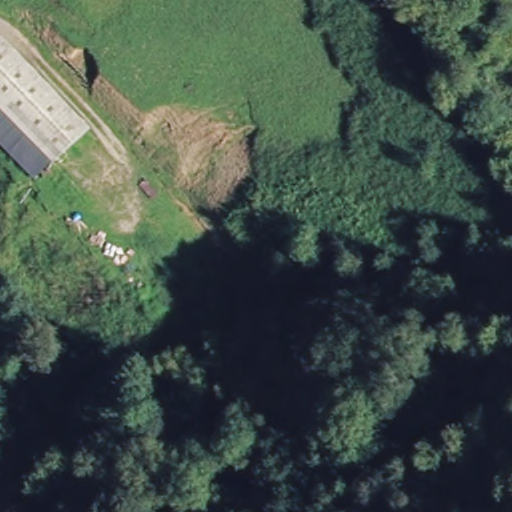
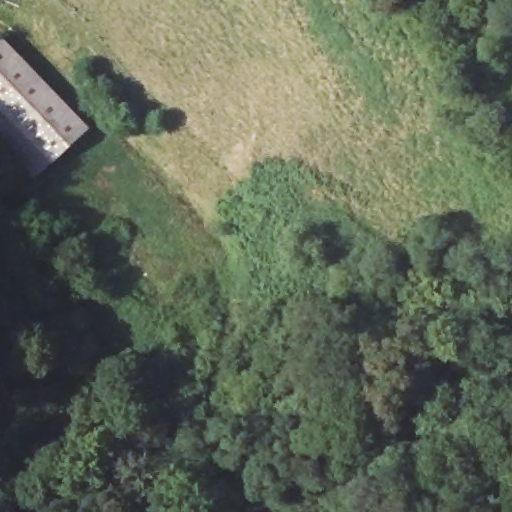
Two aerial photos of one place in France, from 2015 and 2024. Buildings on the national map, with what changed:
unchanged [(3,35),(89,127),(56,160),(0,103),(0,38),(3,35)]
unchanged [(56,160),(38,175),(0,137),(0,103),(56,160)]

